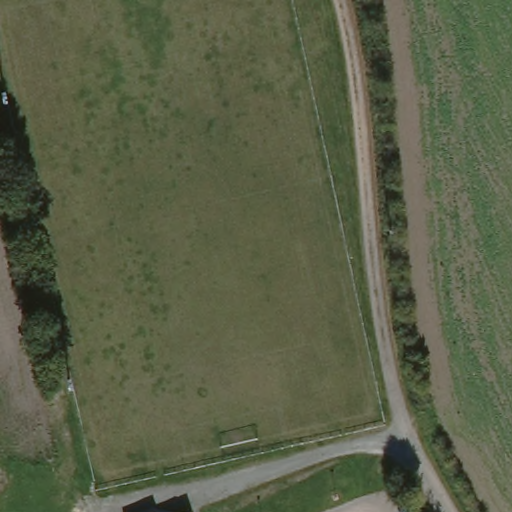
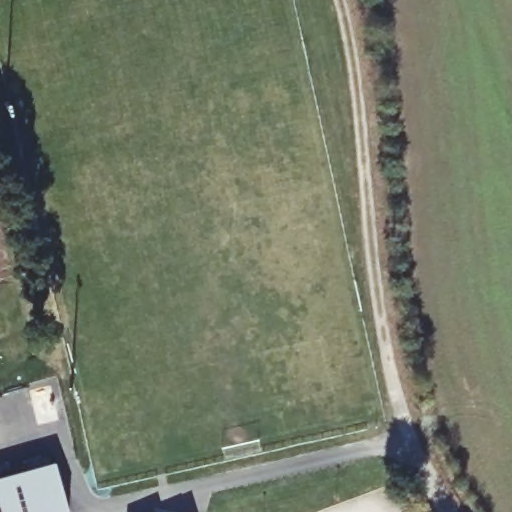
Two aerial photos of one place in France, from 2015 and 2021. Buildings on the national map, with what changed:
new [(69,512),(0,512),(0,480),(55,464),(69,512)]
unchanged [(197,511),(197,512),(194,512),(197,511)]

